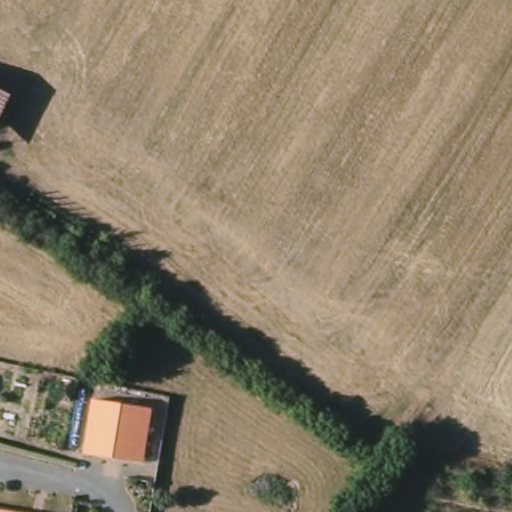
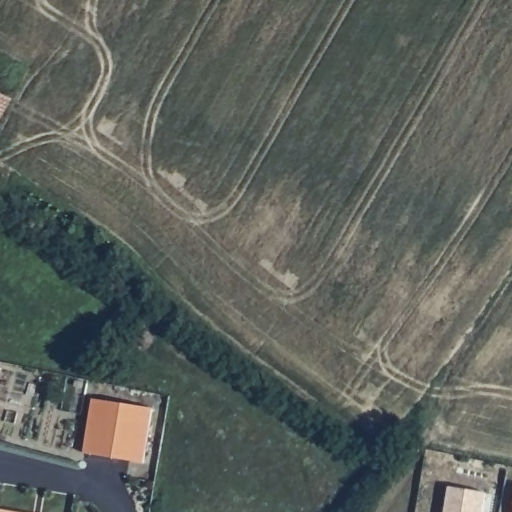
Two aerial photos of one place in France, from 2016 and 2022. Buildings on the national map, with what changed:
unchanged [(0,118),(0,91),(11,96),(0,118)]
unchanged [(152,408),(141,462),(82,450),(93,396),(152,408)]
new [(449,487),(486,493),(483,512),(445,512),(449,487)]
unchanged [(14,512),(0,512),(0,510),(14,512)]

